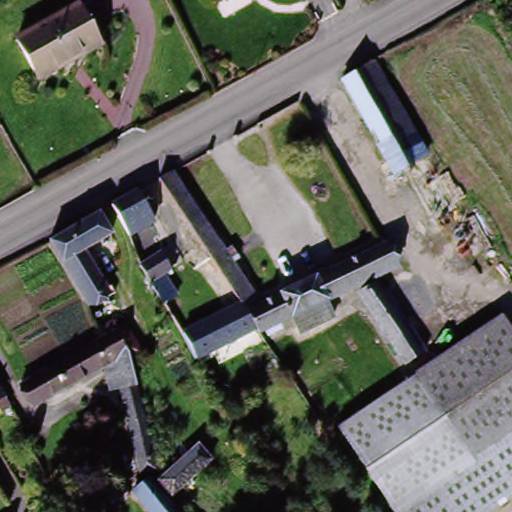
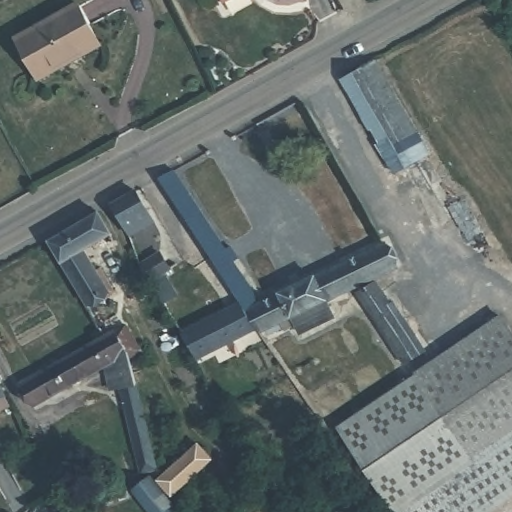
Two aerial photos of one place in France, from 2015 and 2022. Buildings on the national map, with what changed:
unchanged [(231,0),(227,3),(226,0),(231,0)]
unchanged [(39,81),(17,41),(77,9),(97,48),(39,81)]
unchanged [(339,79),(376,60),(429,156),(392,176),(339,79)]
unchanged [(177,168),(240,274),(254,299),(239,306),(232,296),(205,248),(201,242),(200,241),(175,201),(160,178),(177,168)]
unchanged [(109,204),(135,189),(151,221),(126,238),(122,226),(109,204)]
unchanged [(82,253),(102,293),(82,304),(50,242),(98,216),(111,235),(82,253)]
unchanged [(361,283),(334,297),(321,276),(377,245),(390,266),(364,281),(361,283)]
unchanged [(147,283),(140,268),(158,258),(167,273),(163,275),(194,332),(179,341),(147,283)]
unchanged [(262,338),(258,341),(257,339),(254,334),(244,315),(240,309),(239,306),(254,299),(252,305),(257,311),(321,276),(334,297),(320,305),(331,324),(297,343),(294,335),(284,341),(276,330),(262,338)]
unchanged [(375,287),(381,297),(400,285),(415,283),(425,301),(414,313),(397,322),(422,359),(401,372),(354,298),(375,287)]
unchanged [(239,306),(240,309),(244,315),(254,334),(193,368),(179,341),(194,332),(239,306)]
unchanged [(122,391),(111,390),(106,366),(32,409),(21,388),(109,338),(102,325),(116,319),(122,330),(132,325),(139,340),(129,345),(150,474),(136,475),(122,391)]
unchanged [(492,512),(389,512),(357,470),(342,436),(503,327),(512,340),(512,498),(492,512)]
unchanged [(0,413),(0,395),(7,409),(0,413)]
unchanged [(193,449),(205,465),(164,497),(153,480),(192,449),(193,449)]
unchanged [(134,496),(131,492),(143,484),(166,512),(146,512),(134,496)]

